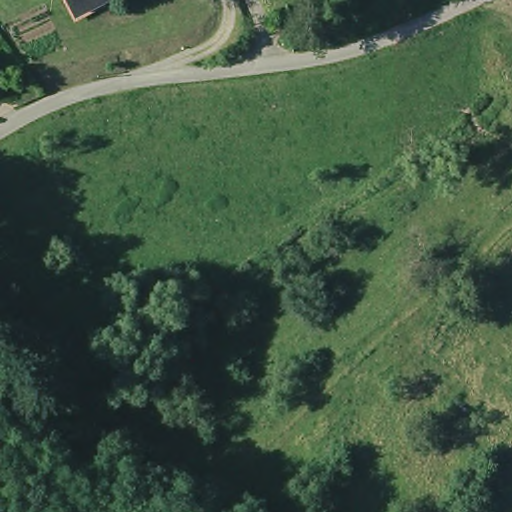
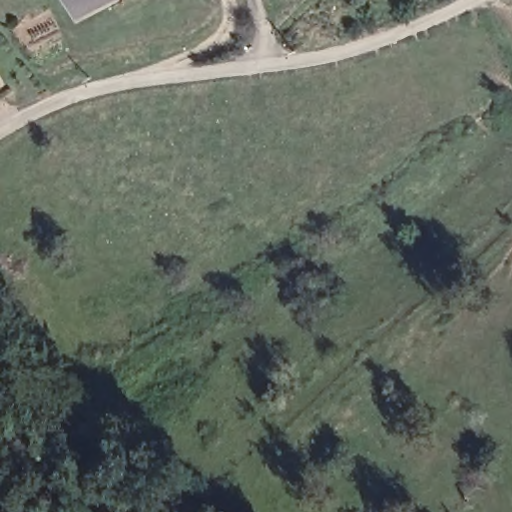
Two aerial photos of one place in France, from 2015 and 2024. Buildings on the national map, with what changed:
unchanged [(70,0),(112,0),(78,17),(70,0)]

